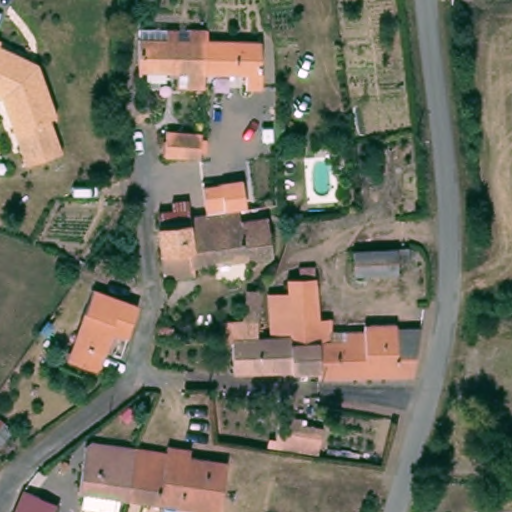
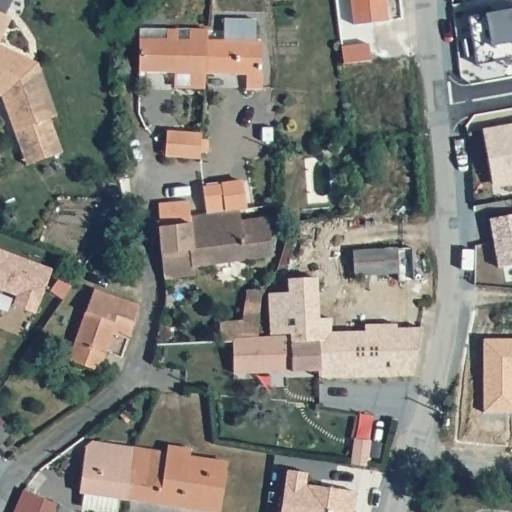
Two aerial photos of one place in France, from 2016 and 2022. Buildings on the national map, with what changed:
new [(477,64),(468,16),(512,8),(512,59),(477,64)]
unchanged [(145,29),(182,29),(182,38),(198,39),(199,28),(210,29),(207,72),(141,68),(142,45),(145,29)]
unchanged [(219,30),(219,40),(261,42),(262,85),(250,85),(250,75),(207,72),(210,29),(219,30)]
unchanged [(2,45),(43,63),(61,118),(55,122),(65,153),(26,163),(5,95),(0,93),(0,39),(2,39),(2,45)]
new [(492,182),(482,128),(512,123),(512,184),(492,187),(492,182)]
unchanged [(200,130),(199,156),(172,156),(171,130),(200,130)]
unchanged [(220,213),(242,212),(243,224),(267,223),(268,264),(195,267),(195,280),(165,281),(164,251),(160,226),(194,225),(194,214),(220,213)]
new [(512,214),(512,263),(499,265),(490,218),(512,214)]
unchanged [(402,242),(404,270),(356,273),(353,248),(402,242)]
new [(0,289),(0,248),(50,266),(34,313),(12,303),(14,295),(0,289)]
unchanged [(298,340),(298,330),(280,331),(279,293),(297,292),(297,279),(307,279),(306,265),(322,264),(323,314),(340,315),(340,338),(372,339),(372,327),(418,326),(418,375),(327,375),(327,370),(327,366),(325,340),(298,340)]
unchanged [(254,292),(271,293),(268,331),(266,336),(265,336),(242,336),(227,337),(230,316),(252,315),(254,292)]
unchanged [(121,301),(124,296),(137,299),(126,338),(111,333),(100,368),(72,360),(80,336),(91,293),(121,301)]
unchanged [(265,336),(266,336),(268,331),(280,331),(298,330),(298,340),(325,340),(327,366),(327,370),(227,369),(228,349),(242,349),(242,336),(265,336)]
new [(510,410),(483,412),(483,339),(512,339),(512,410),(510,410)]
demolished [(318,454),(278,449),(283,414),(327,420),(318,454)]
unchanged [(101,435),(149,444),(134,496),(79,486),(92,442),(101,435)]
unchanged [(176,450),(197,454),(233,463),(220,512),(202,512),(134,496),(149,444),(176,450)]
new [(286,468),(306,471),(305,483),(355,490),(352,512),(349,511),(349,512),(280,512),(286,468)]
unchanged [(57,512),(19,512),(26,492),(59,505),(57,512)]

